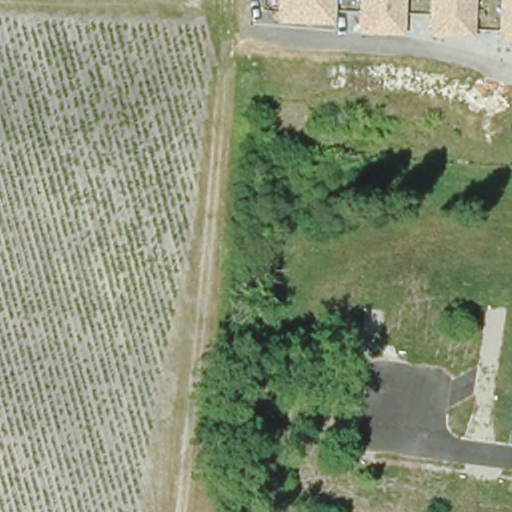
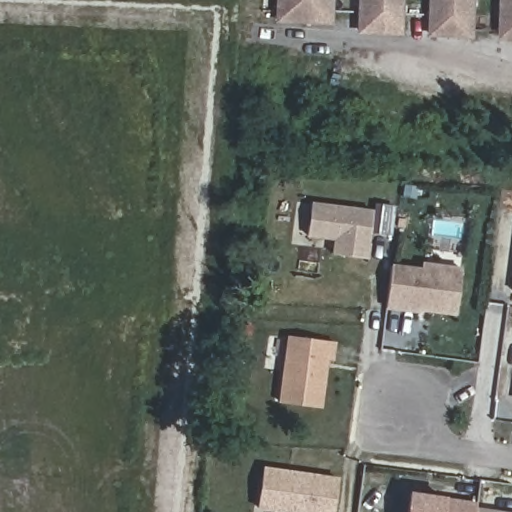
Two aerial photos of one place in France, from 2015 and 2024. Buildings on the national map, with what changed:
unchanged [(335,24),(282,22),(283,0),(336,0),(335,24)]
unchanged [(400,34),(360,33),(361,0),(401,0),(400,34)]
unchanged [(469,37),(428,35),(430,0),(470,0),(469,37)]
unchanged [(505,0),(512,0),(512,39),(503,38),(505,0)]
new [(333,253),(335,240),(309,236),(312,202),(373,210),(368,257),(333,253)]
new [(421,267),(422,261),(462,266),(456,315),(420,311),(420,313),(387,309),(392,264),(421,267)]
new [(335,361),(328,360),(322,408),(278,402),(287,335),(337,341),(335,361)]
new [(281,512),(260,509),(265,467),(340,476),(335,512),(281,512)]
new [(478,502),(478,507),(511,512),(407,512),(410,492),(478,502)]

